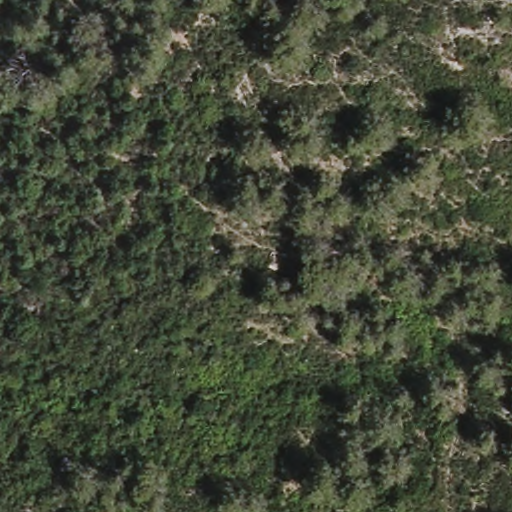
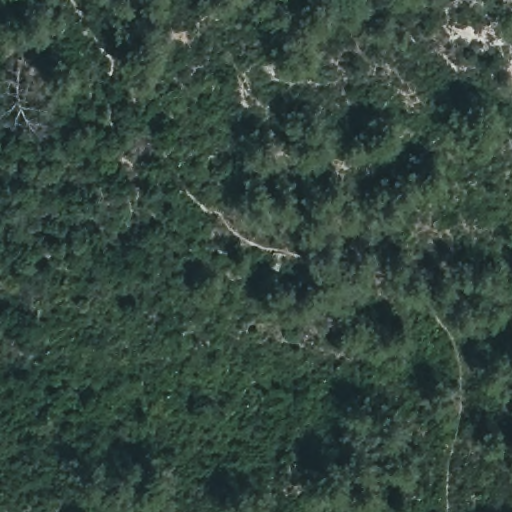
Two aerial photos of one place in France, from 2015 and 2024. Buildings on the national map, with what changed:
unchanged [(274,257),(272,255),(274,252),(276,252),(286,255),(278,270),(270,266),(274,257)]

